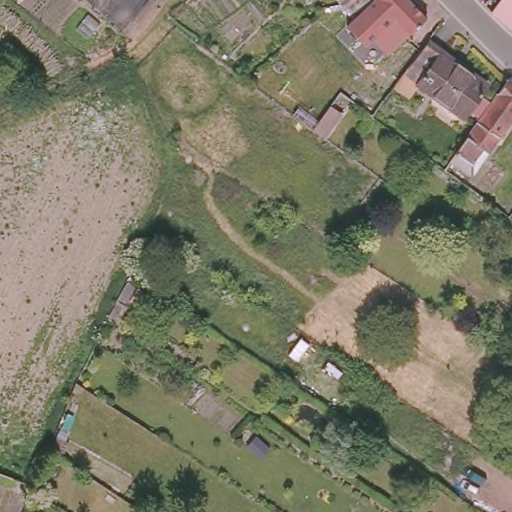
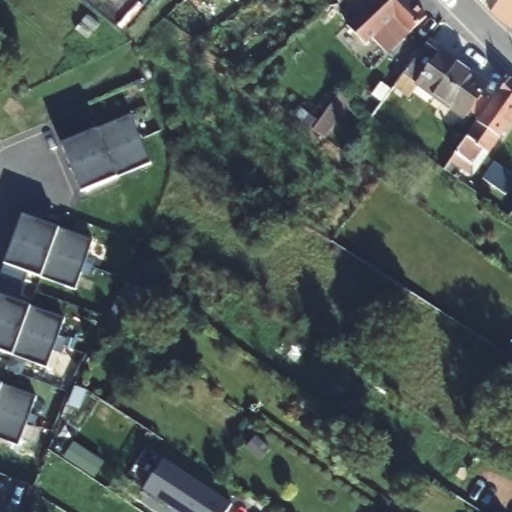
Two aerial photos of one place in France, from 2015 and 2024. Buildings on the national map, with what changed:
unchanged [(372,0),(355,16),(346,6),(344,5),(339,6),(335,0),(372,0)]
new [(373,0),(386,13),(371,27),(386,42),(390,37),(400,46),(388,56),(373,41),(367,45),(348,24),(355,16),(372,0),(373,0)]
unchanged [(400,46),(390,37),(386,42),(371,27),(386,13),(373,0),(408,0),(427,19),(400,46)]
demolished [(477,12),(475,8),(481,0),(499,0),(485,19),(481,17),(477,12)]
new [(489,0),(512,0),(512,27),(491,13),(486,4),(489,0)]
unchanged [(463,121),(405,77),(385,106),(378,101),(402,67),(398,65),(410,47),(420,55),(427,45),(485,87),(463,121)]
demolished [(462,163),(455,157),(512,75),(512,121),(481,164),(468,155),(465,160),(462,163)]
new [(510,77),(512,79),(512,121),(473,176),(450,160),(510,77)]
unchanged [(322,140),(310,132),(313,127),(329,106),(341,115),(322,140)]
new [(131,115),(152,163),(87,191),(82,192),(62,144),(66,142),(131,115)]
demolished [(480,176),(482,173),(485,169),(500,180),(495,187),(480,176)]
new [(21,215),(25,216),(30,202),(49,209),(44,222),(92,240),(75,289),(26,272),(21,287),(16,301),(65,317),(47,367),(0,351),(0,272),(3,264),(21,215)]
new [(0,383),(37,396),(19,446),(0,439),(0,383)]
new [(163,459),(232,504),(227,512),(177,512),(143,490),(163,459)]
demolished [(500,508),(506,512),(498,512),(500,508)]

